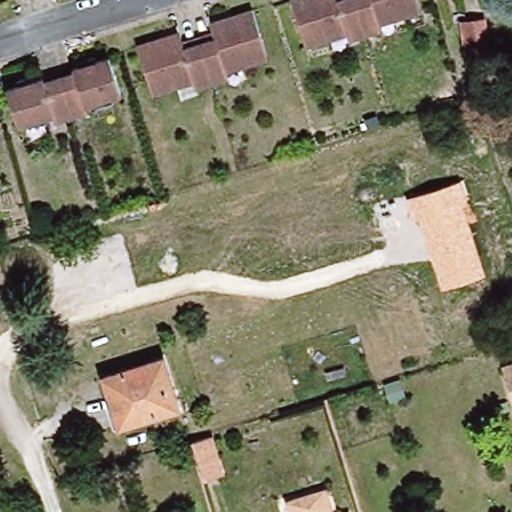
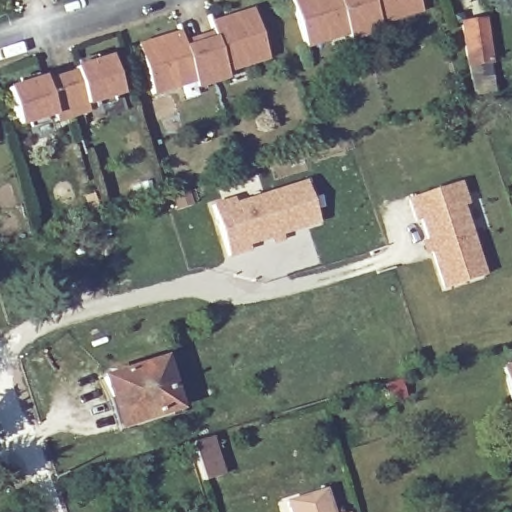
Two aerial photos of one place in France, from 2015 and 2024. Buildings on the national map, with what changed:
unchanged [(346,34),(305,46),(289,0),(336,0),(337,0),(338,0),(352,0),(363,35),(348,40),(346,34)]
unchanged [(421,10),(378,23),(380,30),(363,35),(352,0),(417,0),(421,10)]
unchanged [(210,40),(207,30),(206,24),(228,16),(247,11),(263,59),(222,72),(223,77),(206,83),(195,44),(210,40)]
unchanged [(463,67),(463,27),(486,29),(487,67),(463,67)]
unchanged [(189,82),(147,95),(132,46),(153,40),(175,34),(178,40),(180,48),(195,44),(206,83),(191,88),(189,82)]
unchanged [(55,85),(69,80),(69,75),(104,64),(117,100),(83,110),(85,117),(67,123),(55,85)]
unchanged [(50,128),(49,121),(14,131),(3,96),(39,85),(41,89),(55,85),(67,123),(50,128)]
new [(247,246),(249,251),(228,257),(211,205),(232,197),(234,203),(304,181),(318,224),(247,246)]
unchanged [(470,206),(462,209),(485,276),(442,291),(419,220),(414,222),(407,201),(460,183),(470,206)]
unchanged [(499,366),(512,362),(512,404),(511,400),(499,366)]
unchanged [(123,427),(109,378),(167,363),(179,411),(123,427)]
unchanged [(208,479),(197,443),(214,438),(226,473),(208,479)]
unchanged [(321,491),(327,512),(290,512),(287,502),(321,491)]

